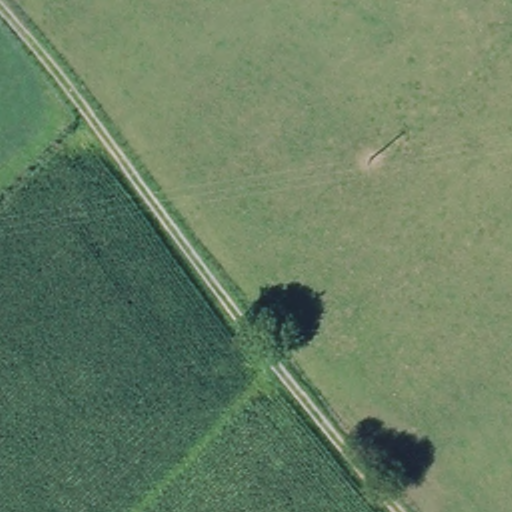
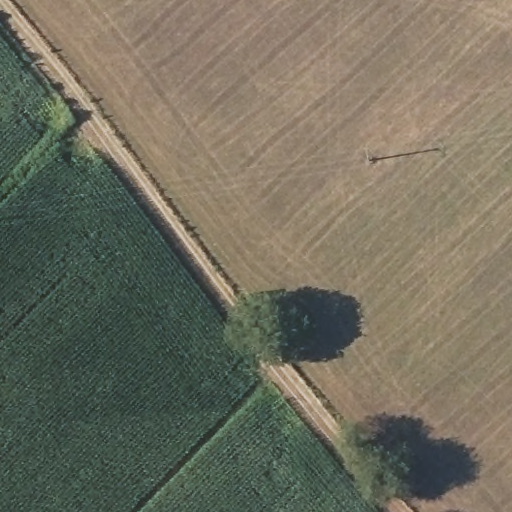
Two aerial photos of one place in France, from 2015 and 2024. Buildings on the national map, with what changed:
[]

